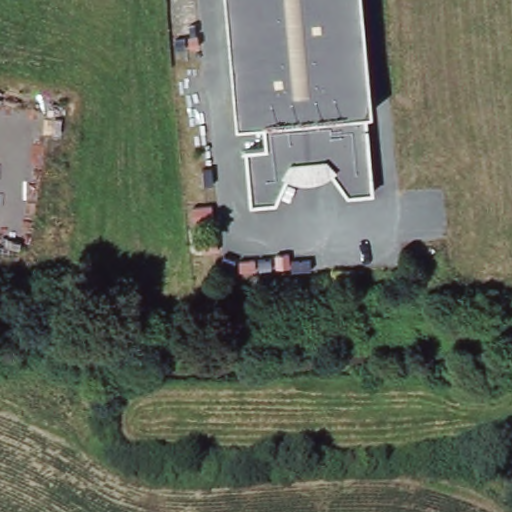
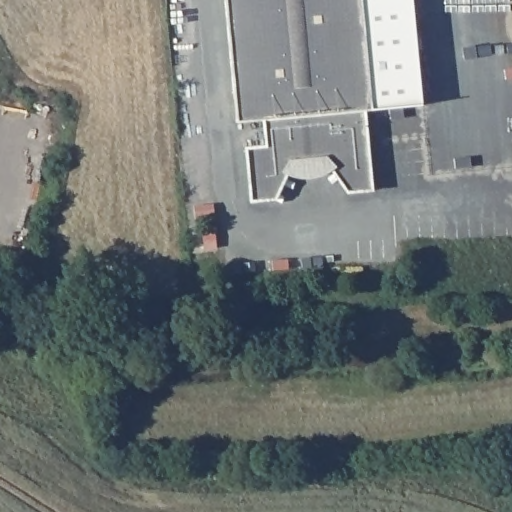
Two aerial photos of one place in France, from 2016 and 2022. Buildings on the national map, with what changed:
unchanged [(324,175),(321,176),(318,177),(315,177),(312,178),(309,179),(306,179),(303,179),(300,179),(297,178),(294,177),(291,177),(288,175),(286,174),(275,199),(250,201),(245,147),(265,146),(263,120),(236,122),(225,0),(361,0),(371,110),(365,110),(372,190),(347,192),(331,170),(330,171),(327,173),(324,175)]
new [(412,0),(423,104),(371,110),(361,0),(412,0)]

